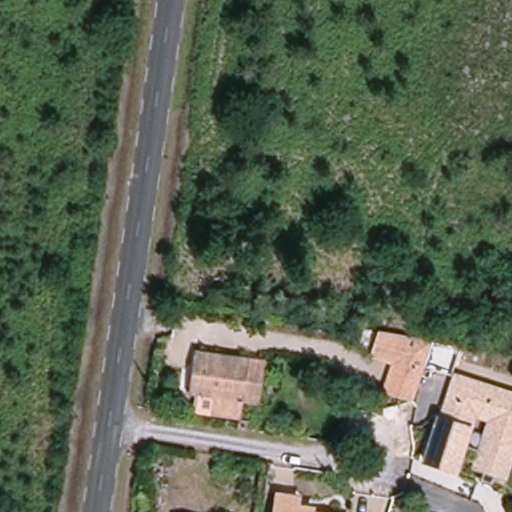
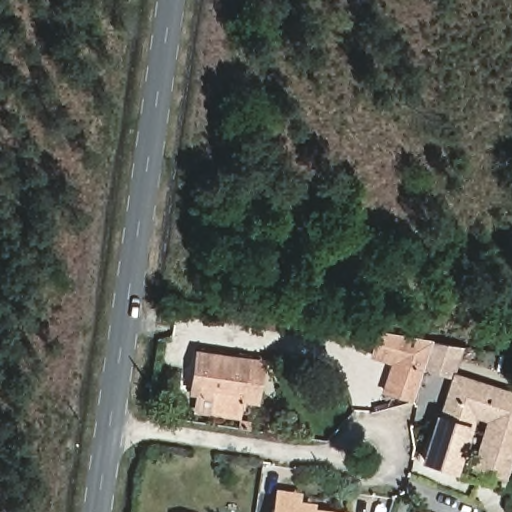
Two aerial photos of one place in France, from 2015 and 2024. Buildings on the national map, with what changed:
unchanged [(413,400),(383,393),(391,364),(376,359),(382,331),(428,342),(413,400)]
unchanged [(204,347),(253,355),(245,409),(217,405),(220,391),(197,387),(204,347)]
unchanged [(452,373),(512,393),(512,452),(505,477),(473,466),(485,426),(474,425),(437,414),(452,373)]
unchanged [(472,428),(457,472),(425,461),(439,417),(472,428)]
unchanged [(301,503),(317,506),(317,511),(320,512),(273,512),(277,491),(302,495),(301,503)]

